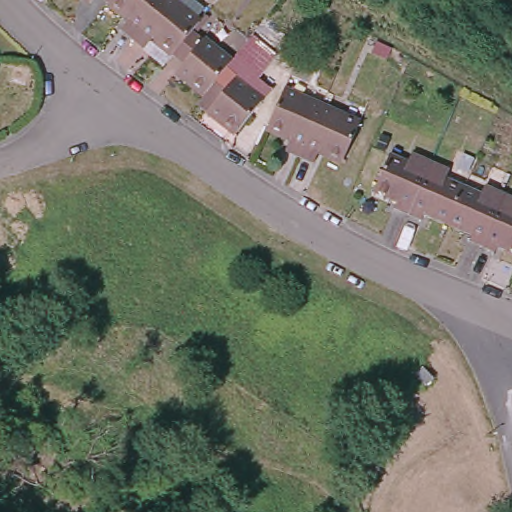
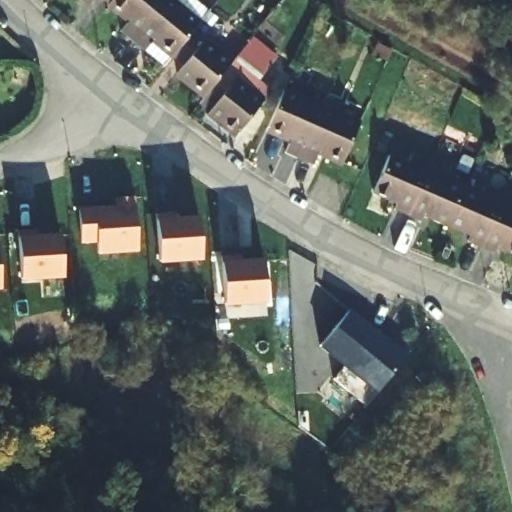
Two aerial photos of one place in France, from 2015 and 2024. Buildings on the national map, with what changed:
unchanged [(91,4),(86,0),(94,0),(91,4)]
unchanged [(110,2),(107,0),(112,0),(110,2)]
unchanged [(134,39),(122,29),(131,19),(110,2),(112,0),(165,0),(134,39)]
unchanged [(201,22),(193,32),(175,55),(155,38),(146,49),(134,39),(165,0),(175,0),(201,22)]
unchanged [(175,55),(193,32),(231,64),(205,96),(178,74),(185,66),(173,57),(175,55)]
unchanged [(251,39),(274,57),(254,82),(265,91),(262,103),(236,136),(197,105),(205,96),(231,64),(251,39)]
unchanged [(323,111),(301,162),(287,156),(293,144),(267,132),(284,94),(323,111)]
unchanged [(360,127),(343,166),(320,155),(315,167),(301,162),(323,111),(360,127)]
unchanged [(369,192),(385,155),(402,163),(407,153),(425,162),(444,170),(440,179),(458,187),(476,195),(480,185),(500,194),(512,199),(512,254),(494,246),(492,252),(477,246),(463,240),(466,234),(443,223),(420,214),(417,220),(403,214),(389,207),(392,202),(369,192)]
new [(98,254),(98,244),(81,244),(81,209),(135,205),(139,252),(98,254)]
new [(159,263),(158,217),(200,216),(202,261),(159,263)]
new [(22,281),(20,236),(62,235),(65,279),(22,281)]
new [(0,290),(0,251),(3,290),(0,290)]
new [(223,262),(263,260),(266,304),(224,307),(223,262)]
new [(378,395),(319,350),(350,311),(407,357),(378,395)]

